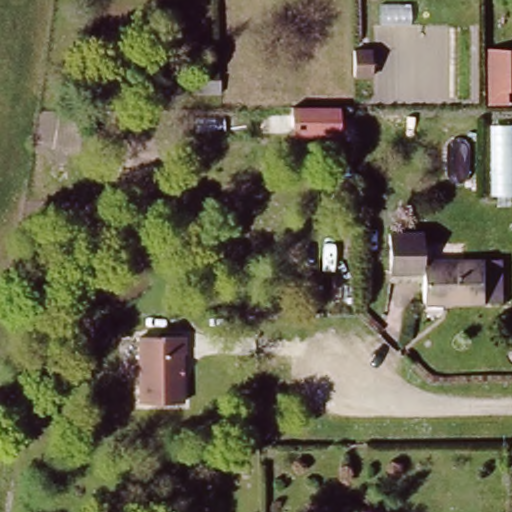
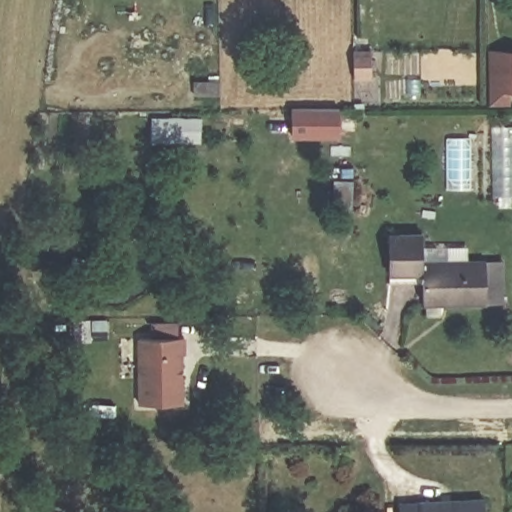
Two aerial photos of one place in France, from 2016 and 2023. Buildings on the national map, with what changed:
unchanged [(512,91),(512,103),(489,104),(489,49),(512,49),(512,91)]
unchanged [(370,61),(370,86),(353,86),(353,61),(370,61)]
unchanged [(215,90),(215,103),(190,103),(189,89),(215,90)]
unchanged [(339,108),(338,137),(293,136),(292,107),(339,108)]
unchanged [(512,126),(512,195),(491,195),(490,125),(512,126)]
unchanged [(423,234),(425,262),(485,260),(486,303),(425,304),(425,275),(391,275),(390,234),(423,234)]
unchanged [(181,356),(178,356),(178,404),(135,403),(136,339),(181,339),(181,356)]
new [(486,512),(421,512),(420,501),(485,497),(486,512)]

